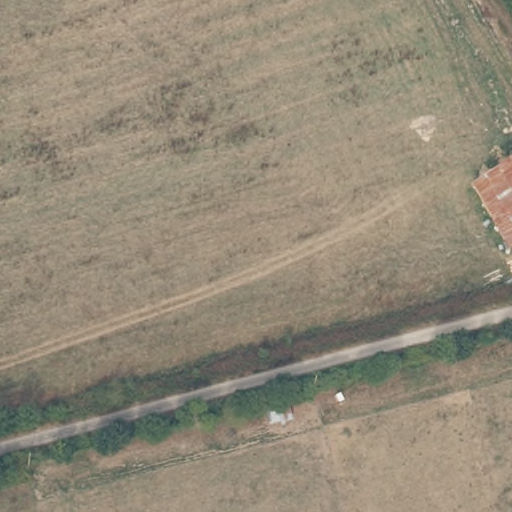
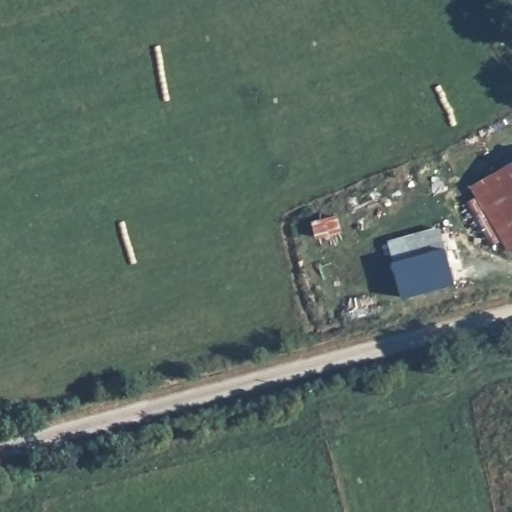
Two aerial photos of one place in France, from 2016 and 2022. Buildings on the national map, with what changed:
unchanged [(471,186),(512,162),(512,249),(510,250),(471,186)]
new [(394,262),(389,240),(440,226),(446,249),(455,284),(404,298),(394,262)]

